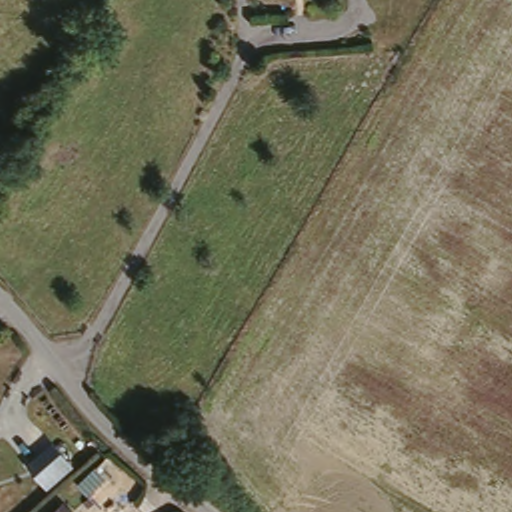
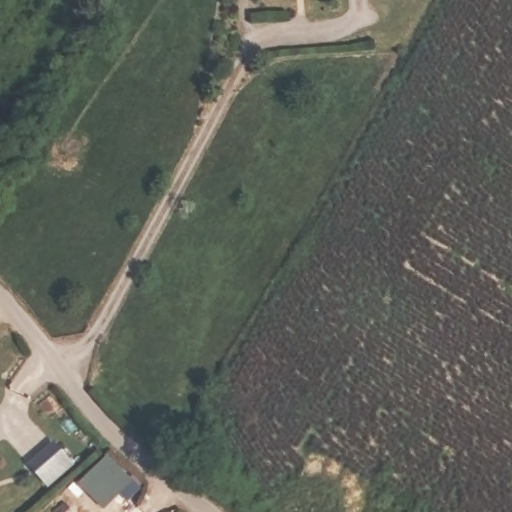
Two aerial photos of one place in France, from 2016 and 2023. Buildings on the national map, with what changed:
unchanged [(27,467),(51,444),(72,464),(47,487),(27,467)]
new [(113,450),(146,483),(129,502),(120,494),(103,510),(80,484),(113,450)]

